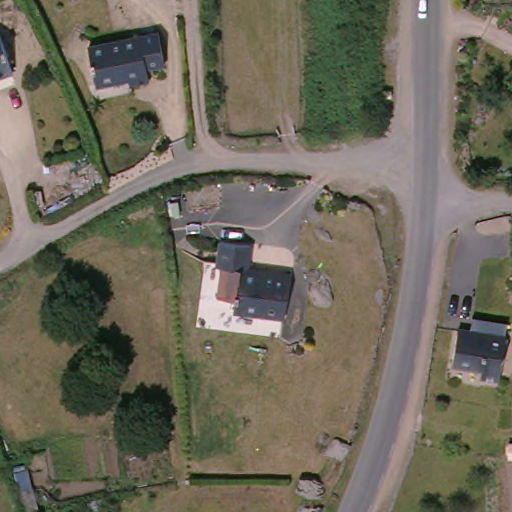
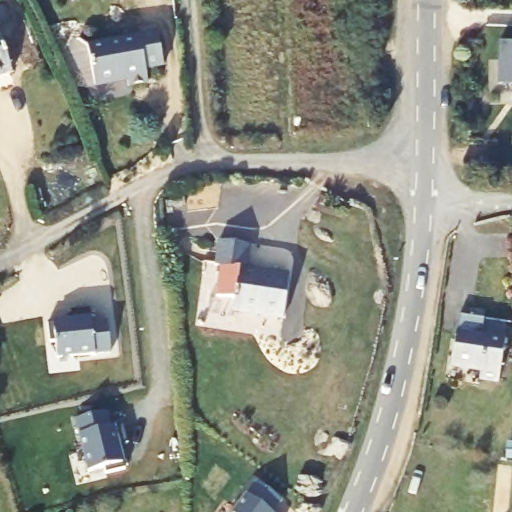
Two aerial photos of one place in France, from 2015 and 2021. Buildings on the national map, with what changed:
unchanged [(155,32),(162,64),(143,67),(146,80),(127,84),(125,77),(93,83),(85,46),(155,32)]
unchanged [(14,77),(0,83),(0,41),(14,74),(14,77)]
new [(512,41),(512,82),(499,82),(499,41),(512,41)]
unchanged [(294,278),(289,326),(262,323),(263,313),(236,310),(236,302),(218,300),(221,268),(218,267),(221,241),(254,245),(252,273),(294,278)]
new [(71,326),(71,317),(90,315),(92,330),(108,328),(110,358),(56,363),(55,347),(49,348),(47,328),(71,326)]
unchanged [(499,382),(489,380),(491,370),(455,364),(461,333),(469,334),(479,336),(481,321),(509,327),(499,382)]
new [(105,412),(108,427),(122,424),(126,444),(117,446),(122,469),(102,473),(101,468),(86,471),(74,418),(105,412)]
unchanged [(276,512),(237,512),(252,493),(276,512)]

